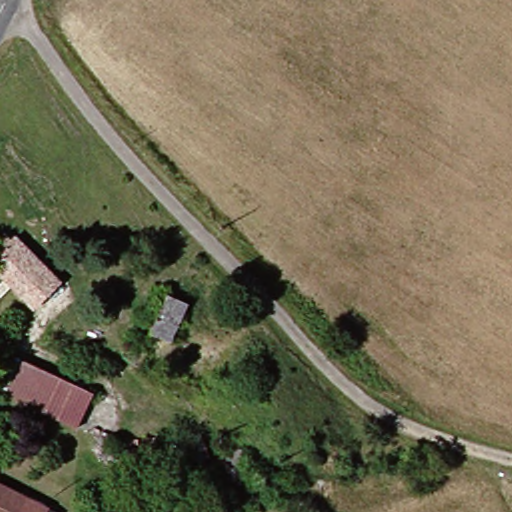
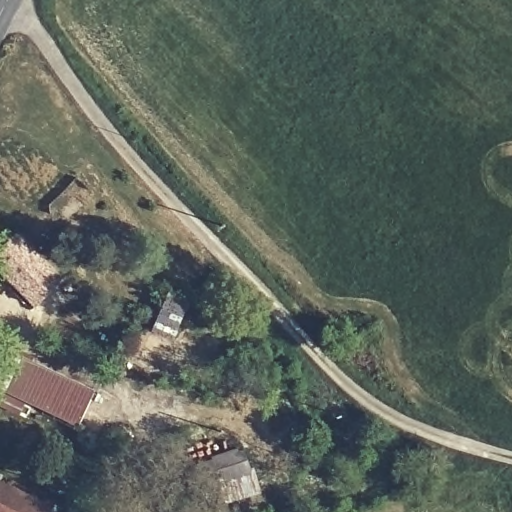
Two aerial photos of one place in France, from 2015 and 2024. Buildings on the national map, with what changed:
unchanged [(0,251),(0,238),(1,236),(9,242),(14,236),(64,277),(41,307),(19,289),(0,275),(0,254),(1,252),(0,251)]
unchanged [(168,344),(147,337),(162,295),(183,302),(168,344)]
unchanged [(0,363),(87,395),(75,427),(0,400),(0,363)]
unchanged [(244,467),(192,500),(181,483),(234,450),(244,467)]
unchanged [(0,488),(46,512),(0,512),(0,488)]

